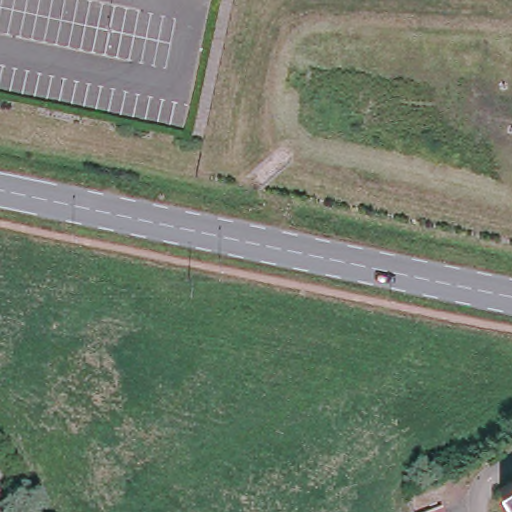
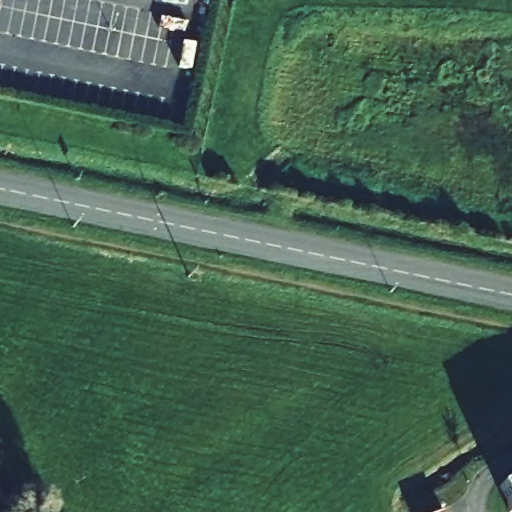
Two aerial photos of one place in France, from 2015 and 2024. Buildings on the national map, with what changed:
unchanged [(502,487),(512,481),(512,512),(509,512),(510,500),(502,487)]

